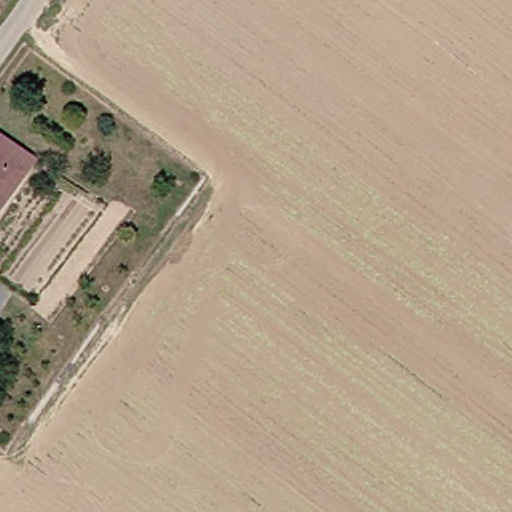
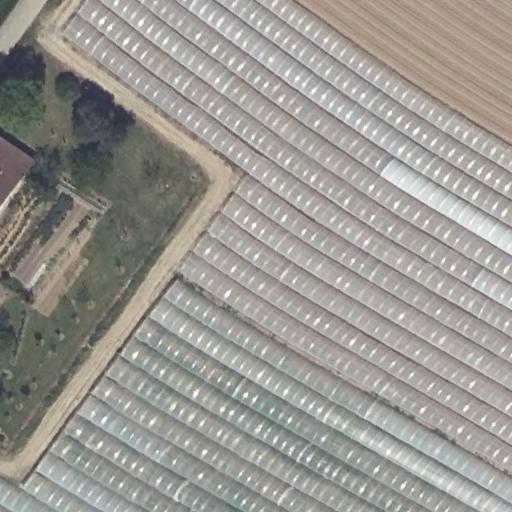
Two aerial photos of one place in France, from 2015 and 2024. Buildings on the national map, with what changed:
new [(176,281),(250,172),(128,82),(64,33),(88,0),(297,0),(392,70),(461,113),(512,144),(512,512),(0,512),(0,474),(22,487),(176,281)]
unchanged [(10,188),(0,203),(0,132),(34,155),(10,188)]

